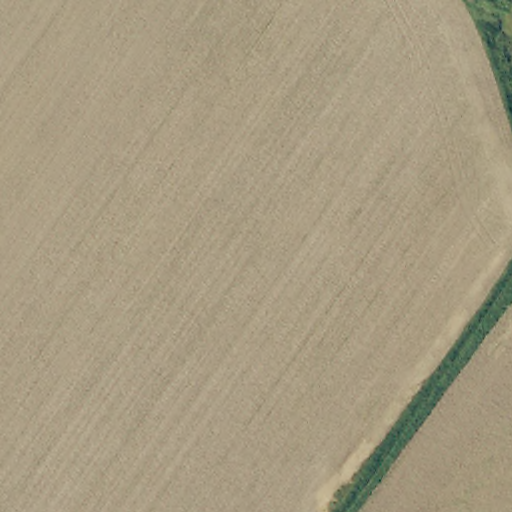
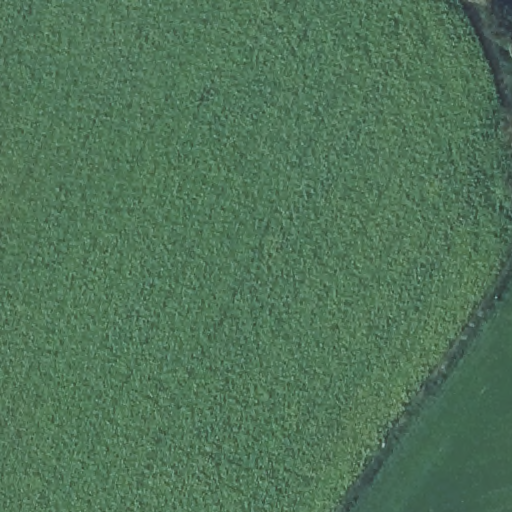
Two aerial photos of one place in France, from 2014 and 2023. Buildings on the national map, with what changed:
[]

